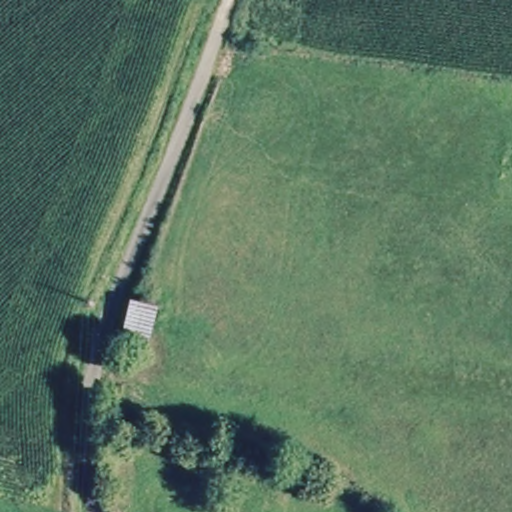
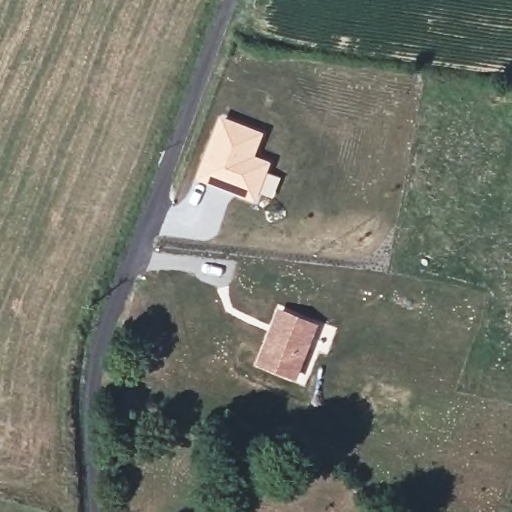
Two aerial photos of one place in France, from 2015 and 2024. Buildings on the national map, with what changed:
new [(223,114),(265,131),(257,154),(272,160),(268,171),(282,177),(273,198),(260,193),(248,189),(201,170),(223,114)]
unchanged [(160,307),(143,356),(118,347),(134,299),(160,307)]
new [(279,306),(321,323),(297,381),(255,365),(279,306)]

